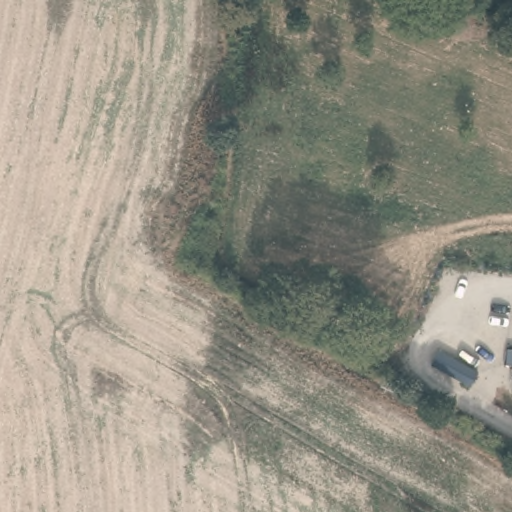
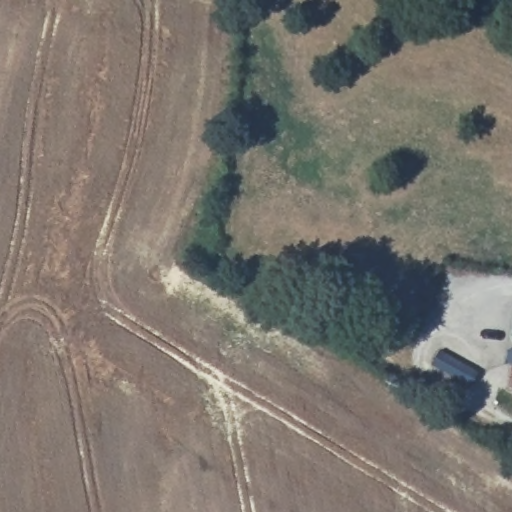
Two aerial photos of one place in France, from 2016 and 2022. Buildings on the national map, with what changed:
unchanged [(442,351),(478,370),(479,368),(469,392),(431,370),(442,351)]

